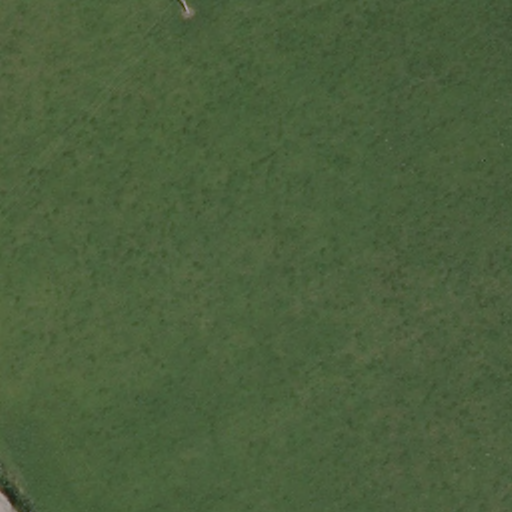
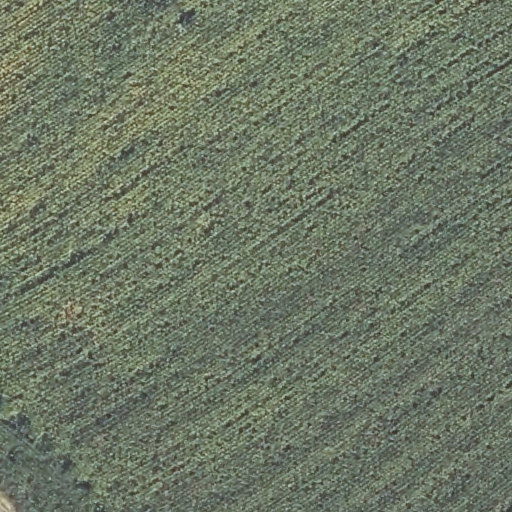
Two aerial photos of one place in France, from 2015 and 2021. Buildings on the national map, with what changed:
[]

